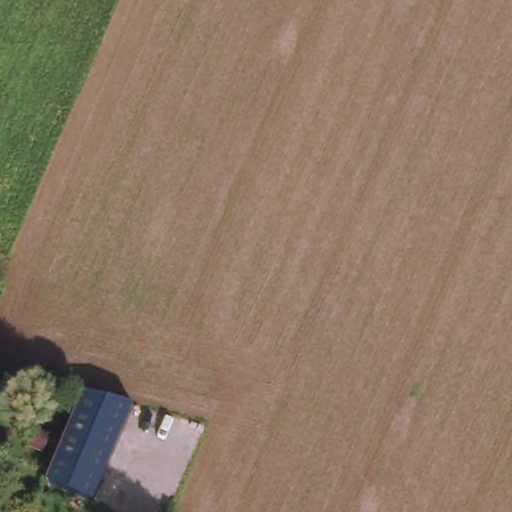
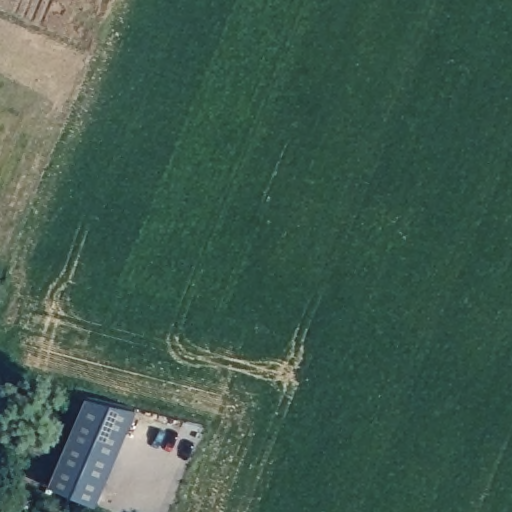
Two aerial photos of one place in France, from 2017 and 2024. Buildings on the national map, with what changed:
unchanged [(96,506),(47,486),(82,397),(135,407),(96,506)]

